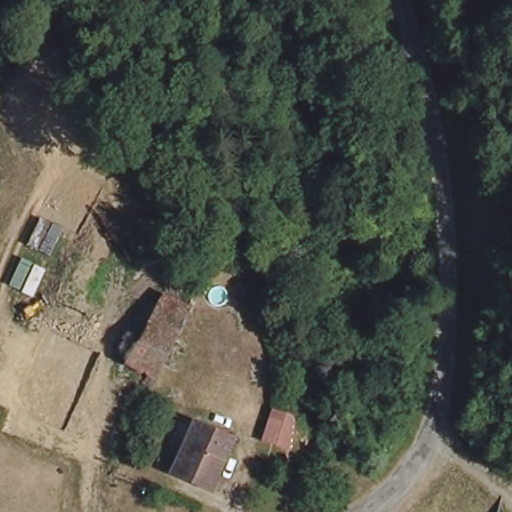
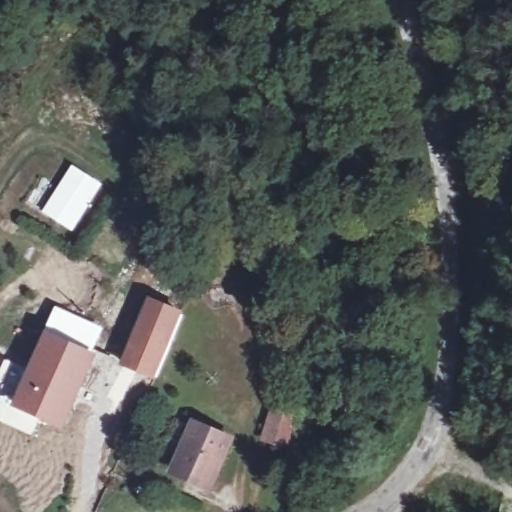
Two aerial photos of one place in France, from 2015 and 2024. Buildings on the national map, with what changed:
new [(102,182),(74,232),(42,214),(72,165),(102,182)]
unchanged [(158,298),(189,308),(156,379),(121,365),(158,298)]
new [(55,313),(93,330),(83,352),(45,335),(55,313)]
new [(45,335),(83,352),(90,355),(60,425),(15,405),(45,335)]
demolished [(196,350),(213,361),(191,407),(170,400),(196,350)]
unchanged [(272,415),(295,427),(287,449),(272,441),(275,432),(266,427),(272,415)]
unchanged [(229,444),(208,490),(171,474),(190,427),(229,444)]

